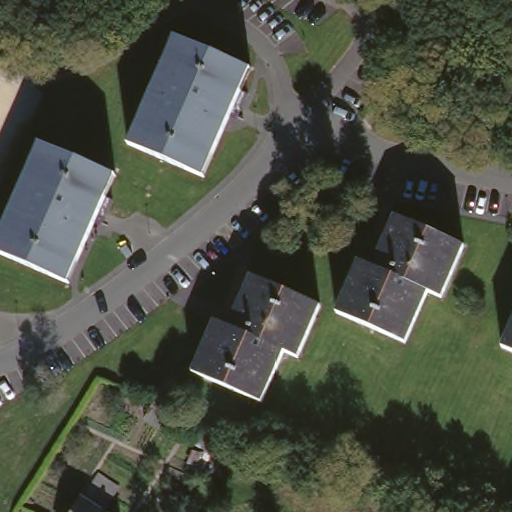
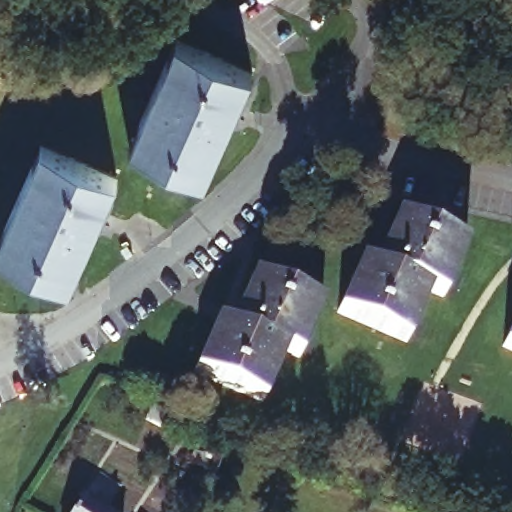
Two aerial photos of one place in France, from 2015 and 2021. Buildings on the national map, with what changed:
unchanged [(251,69),(242,90),(231,116),(206,175),(131,142),(177,37),(251,69)]
unchanged [(116,175),(71,282),(0,251),(0,241),(43,143),(116,175)]
unchanged [(460,245),(437,297),(424,291),(401,342),(333,313),(356,261),(370,266),(392,216),(460,245)]
unchanged [(317,305),(294,356),(281,350),(257,402),(189,372),(212,320),(225,326),(248,275),(317,305)]
unchanged [(512,314),(512,353),(498,346),(512,314)]
unchanged [(180,407),(169,427),(167,431),(147,420),(159,396),(180,407)]
unchanged [(69,512),(94,474),(114,486),(99,511),(101,512),(69,512)]

